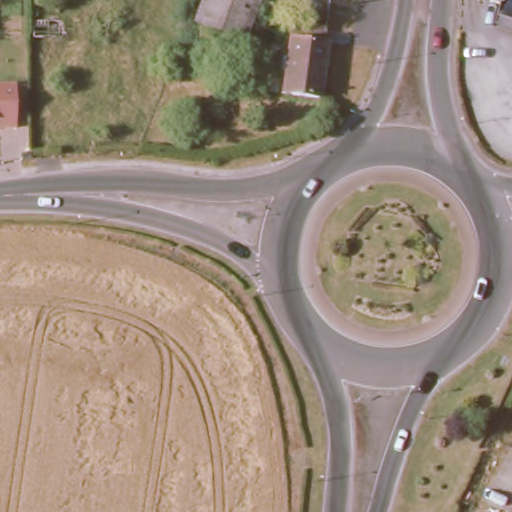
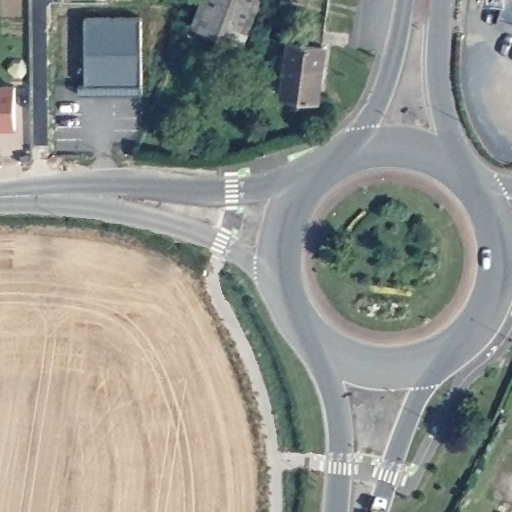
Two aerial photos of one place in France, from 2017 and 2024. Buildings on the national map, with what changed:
unchanged [(244,43),(192,27),(201,0),(259,0),(244,43)]
unchanged [(502,18),(504,4),(489,0),(512,0),(512,29),(501,25),(502,18)]
demolished [(62,16),(62,32),(30,31),(29,16),(62,16)]
new [(76,96),(76,87),(83,87),(83,68),(81,36),(80,19),(137,17),(140,93),(128,94),(88,96),(76,96)]
unchanged [(324,34),(323,52),(330,52),(324,106),(282,101),(284,79),(274,78),(275,63),(287,64),(290,30),(324,34)]
unchanged [(12,78),(14,120),(0,121),(0,79),(12,78)]

